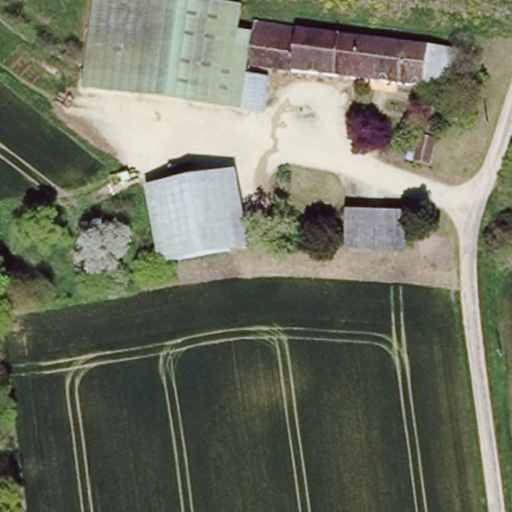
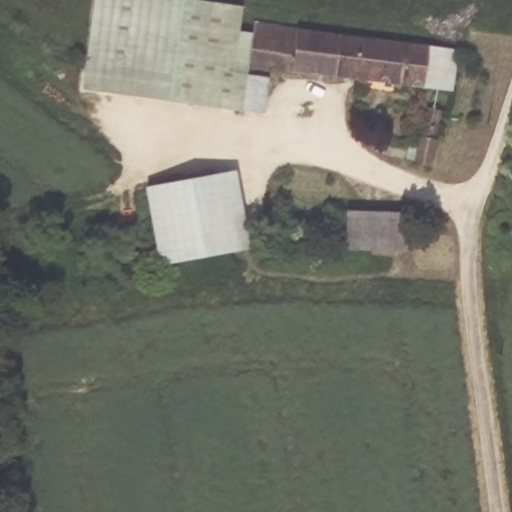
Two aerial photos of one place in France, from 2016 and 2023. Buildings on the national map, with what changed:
unchanged [(84,84),(96,0),(187,0),(252,9),(251,22),(249,34),(227,31),(230,19),(175,12),(162,95),(84,84)]
unchanged [(175,12),(230,19),(227,31),(249,34),(245,61),(244,71),(263,75),(259,108),(210,101),(162,95),(175,12)]
unchanged [(424,46),(418,85),(245,61),(249,34),(251,22),(424,46)]
unchanged [(450,50),(445,81),(440,88),(418,85),(424,46),(450,50)]
unchanged [(417,134),(421,109),(436,110),(432,137),(437,137),(432,167),(398,157),(401,132),(417,134)]
unchanged [(233,171),(246,250),(157,266),(141,185),(233,171)]
unchanged [(395,255),(357,245),(341,240),(351,205),(367,209),(405,220),(395,255)]

